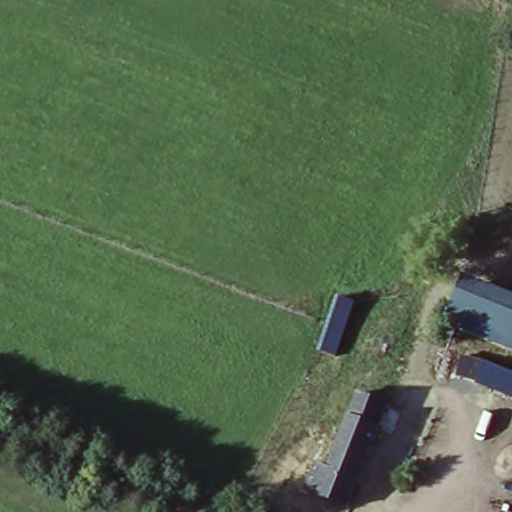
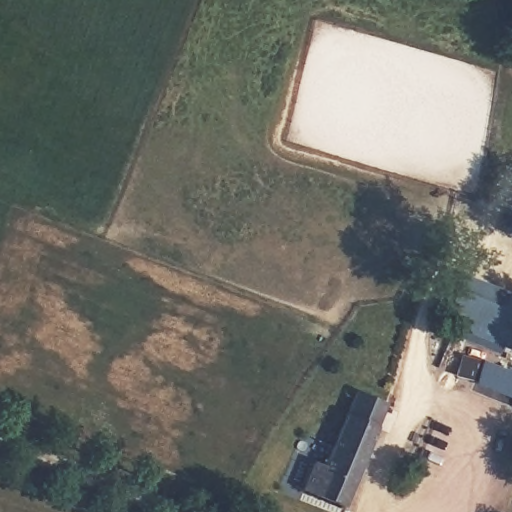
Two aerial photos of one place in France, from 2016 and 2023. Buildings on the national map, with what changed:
unchanged [(512,339),(446,312),(460,278),(512,300),(512,339)]
unchanged [(512,373),(512,399),(476,382),(457,377),(463,356),(485,361),(512,373)]
unchanged [(322,480),(346,417),(355,394),(385,406),(376,430),(345,507),(306,491),(311,475),(322,480)]

